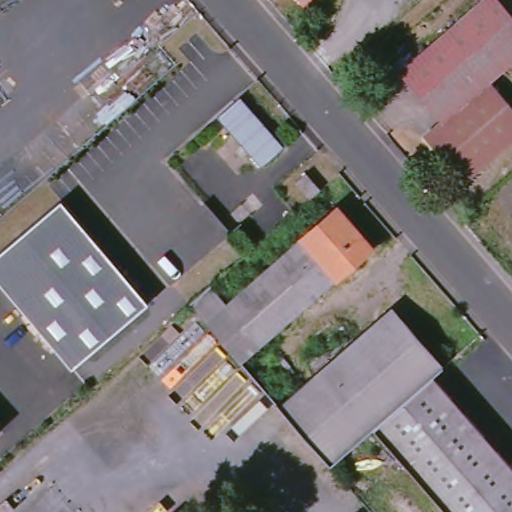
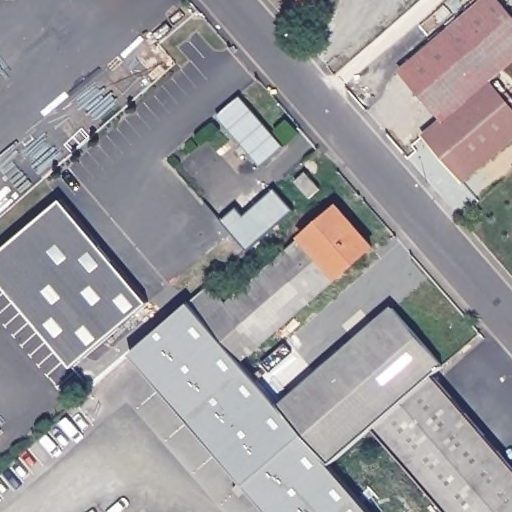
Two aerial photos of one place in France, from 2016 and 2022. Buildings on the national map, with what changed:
unchanged [(440,118),(397,69),(478,0),(498,0),(512,17),(512,56),(487,78),(512,107),(512,137),(460,181),(420,136),(440,118)]
unchanged [(219,116),(241,96),(285,145),(262,165),(219,116)]
unchanged [(310,196),(295,180),(306,171),(320,187),(310,196)]
unchanged [(62,198),(150,301),(73,366),(44,331),(0,280),(0,251),(62,198)]
unchanged [(233,306),(342,212),(375,250),(267,345),(233,306)]
new [(245,365),(280,406),(284,403),(334,460),(330,465),(371,512),(269,512),(132,354),(189,304),(212,283),(215,287),(194,306),(245,365)]
unchanged [(194,306),(215,287),(233,306),(267,345),(245,365),(194,306)]
unchanged [(334,460),(284,403),(392,306),(444,364),(334,460)]
unchanged [(433,376),(512,467),(512,512),(449,512),(375,427),(433,376)]

